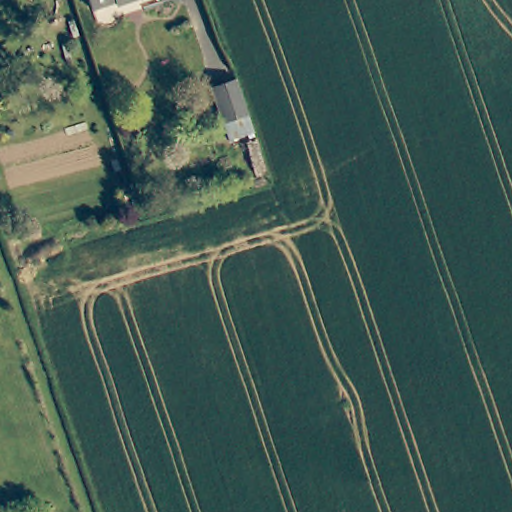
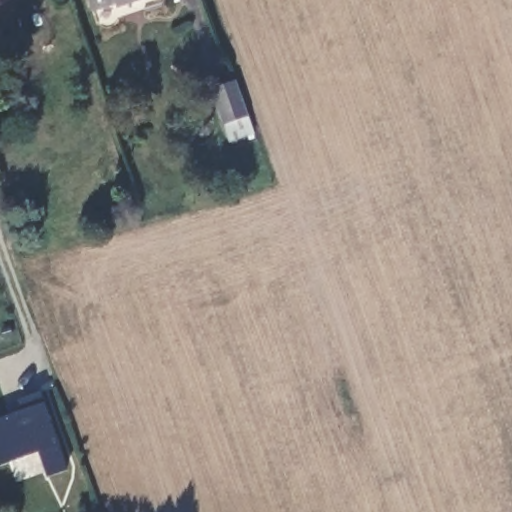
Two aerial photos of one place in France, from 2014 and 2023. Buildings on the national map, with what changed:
unchanged [(222,131),(210,94),(214,92),(234,86),(246,122),(252,139),(233,145),(227,147),(222,131)]
new [(46,476),(38,452),(0,465),(0,417),(20,410),(16,401),(41,392),(67,470),(46,476)]

